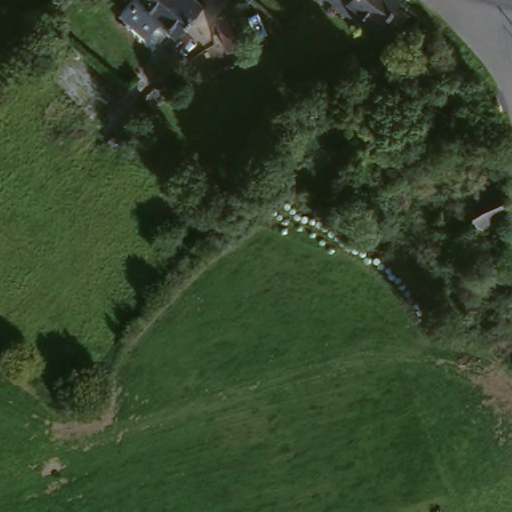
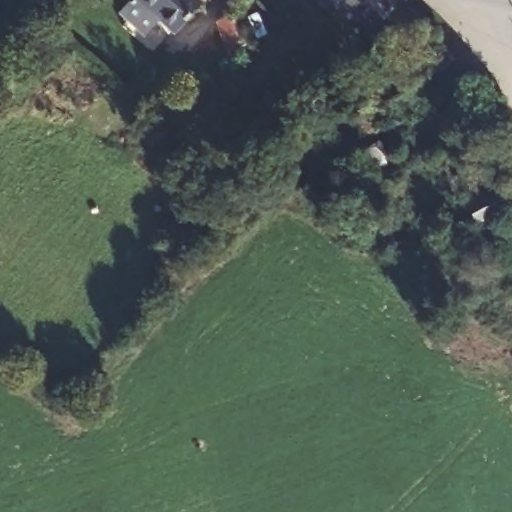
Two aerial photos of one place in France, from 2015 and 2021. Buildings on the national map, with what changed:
unchanged [(180,31),(140,0),(203,0),(180,31)]
unchanged [(396,31),(371,13),(356,3),(358,0),(412,0),(414,1),(396,31)]
unchanged [(239,43),(232,48),(218,21),(232,13),(239,43)]
unchanged [(483,216),(475,199),(491,190),(505,182),(512,200),(512,212),(486,225),(483,217),(483,216)]

